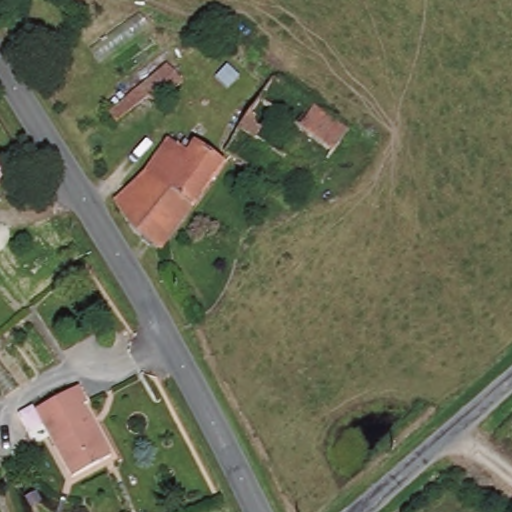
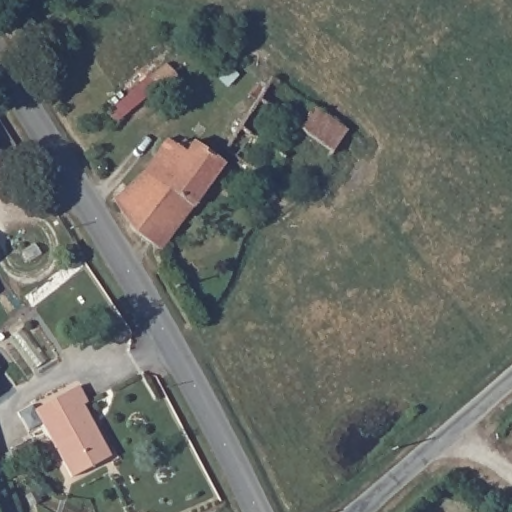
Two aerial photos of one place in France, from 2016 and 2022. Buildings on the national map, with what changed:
unchanged [(179,81),(150,106),(144,98),(112,125),(103,113),(163,65),(179,81)]
unchanged [(162,139),(182,153),(190,143),(219,163),(156,250),(129,233),(110,201),(137,176),(162,139)]
unchanged [(14,188),(0,197),(0,166),(7,176),(14,188)]
unchanged [(75,387),(85,404),(80,408),(107,459),(68,479),(32,411),(75,387)]

